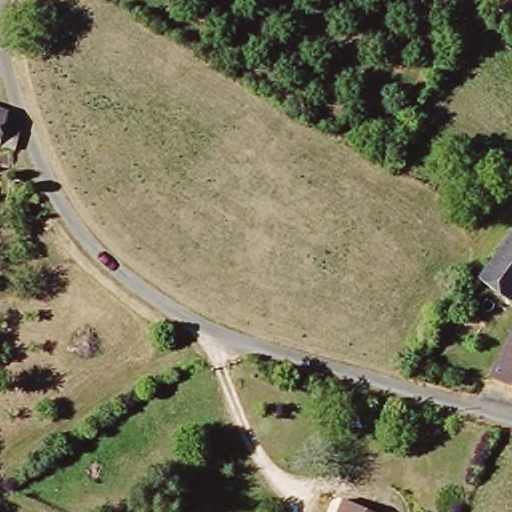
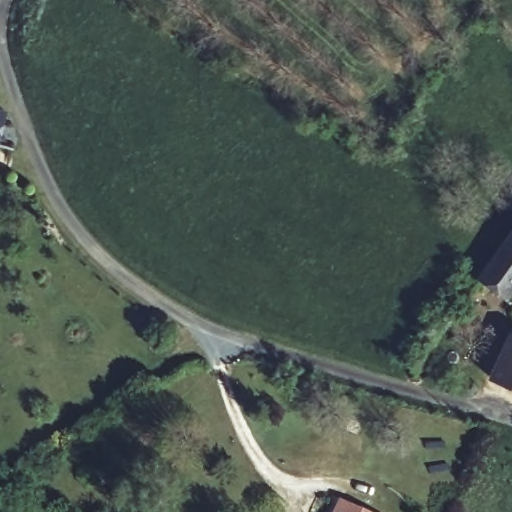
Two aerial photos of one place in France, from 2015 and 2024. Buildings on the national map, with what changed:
unchanged [(0,119),(2,120),(10,147),(9,151),(0,148),(0,119)]
unchanged [(504,299),(475,278),(512,229),(512,288),(504,299)]
unchanged [(512,341),(512,386),(494,380),(512,341)]
unchanged [(365,512),(335,512),(340,501),(365,512)]

